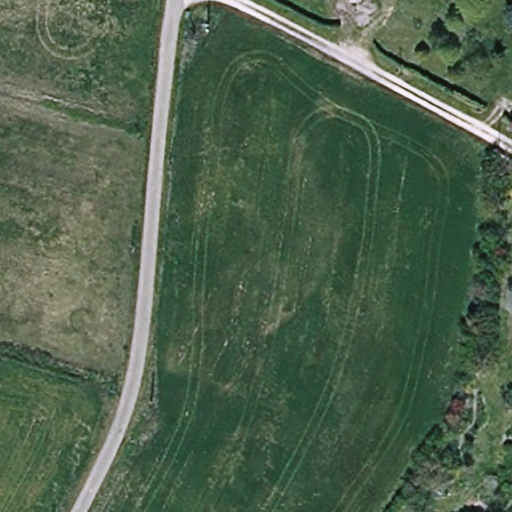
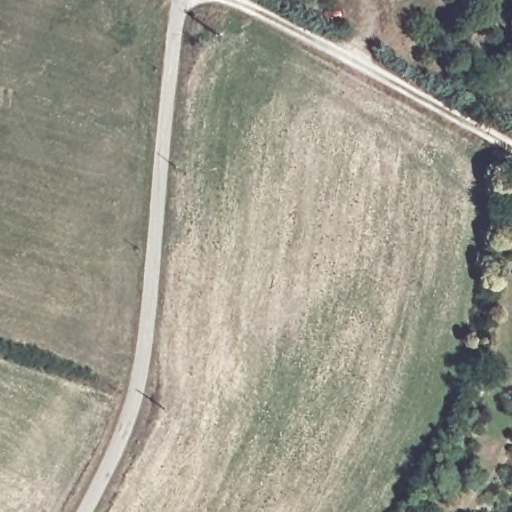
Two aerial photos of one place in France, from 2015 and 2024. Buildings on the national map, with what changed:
unchanged [(229,14),(223,28),(209,20),(217,8),(229,14)]
unchanged [(509,129),(512,125),(512,131),(509,129)]

